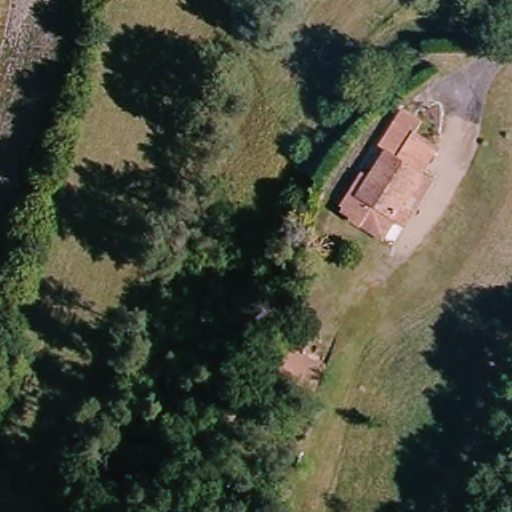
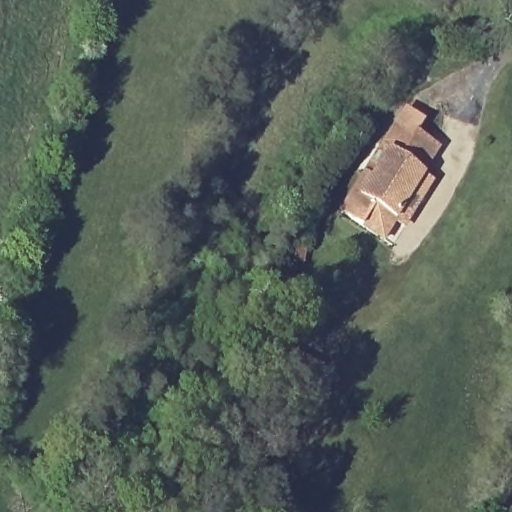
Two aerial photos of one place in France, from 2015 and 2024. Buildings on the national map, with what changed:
unchanged [(379,241),(347,219),(339,214),(405,117),(424,128),(417,141),(432,150),(436,153),(422,177),(432,184),(402,230),(391,223),(379,241)]

